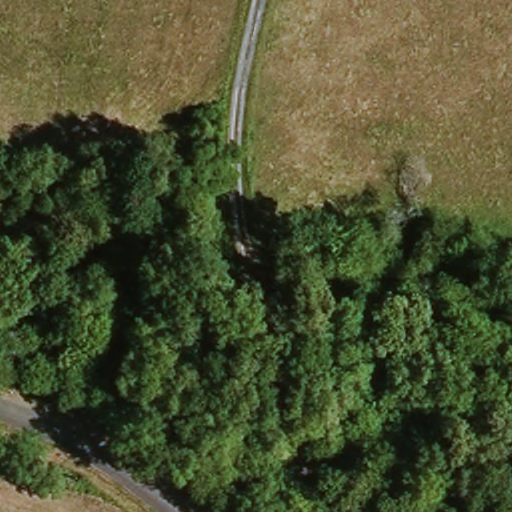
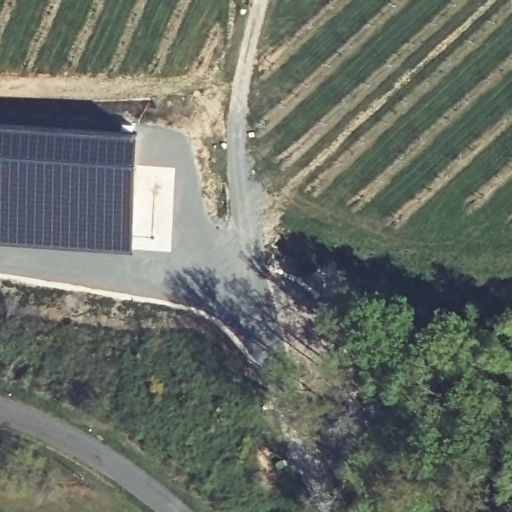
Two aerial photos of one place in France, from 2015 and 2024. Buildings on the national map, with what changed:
new [(169,228),(170,253),(135,251),(0,246),(0,118),(34,120),(141,129),(136,232),(147,233),(148,227),(169,228)]

